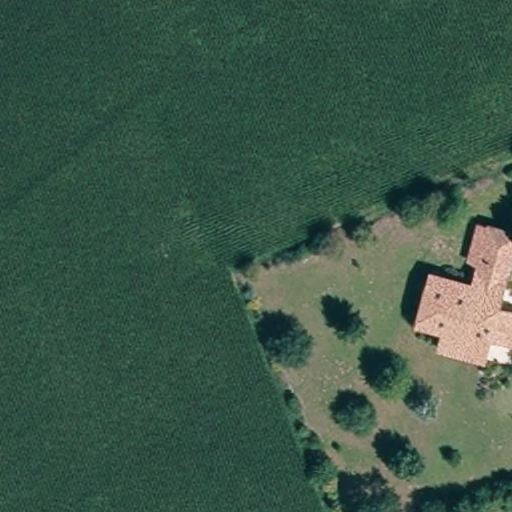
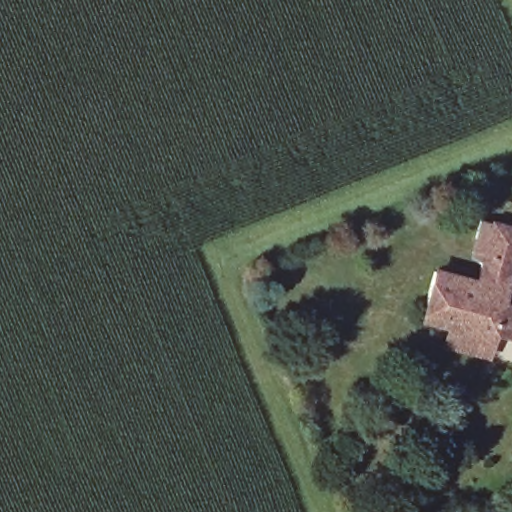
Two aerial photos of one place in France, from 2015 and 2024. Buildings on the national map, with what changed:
unchanged [(439,352),(445,325),(423,320),(433,277),(473,288),(489,225),(512,231),(512,261),(501,302),(512,305),(512,341),(494,337),(491,351),(487,365),(439,352)]

